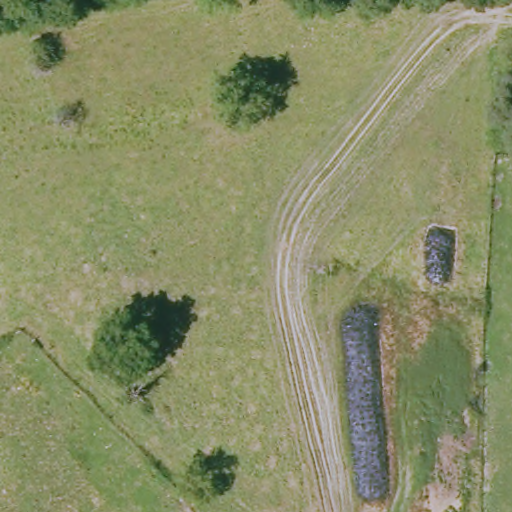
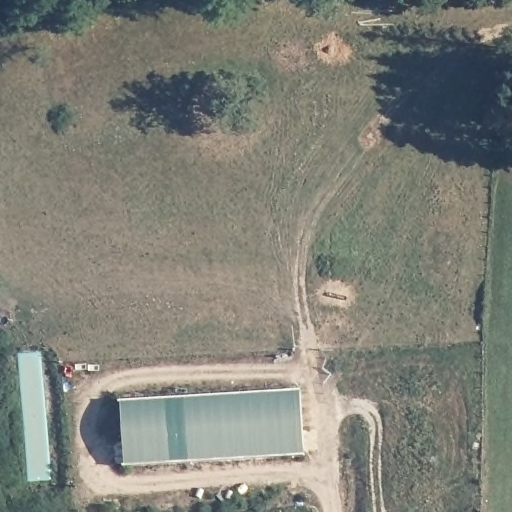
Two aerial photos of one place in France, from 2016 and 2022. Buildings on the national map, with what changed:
new [(122,402),(301,390),(304,455),(126,466),(122,402)]

